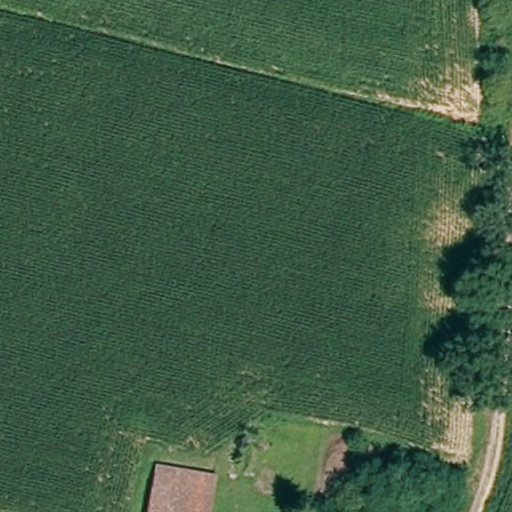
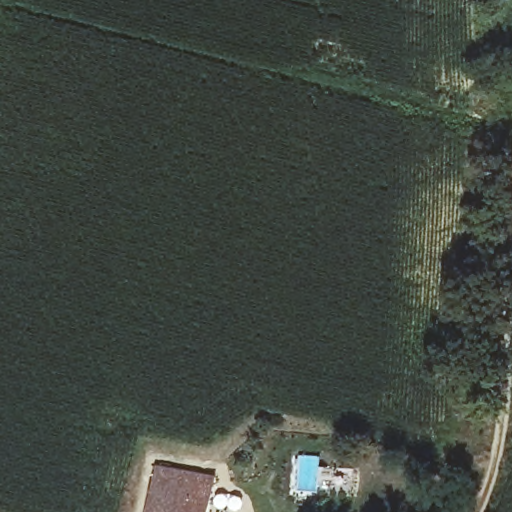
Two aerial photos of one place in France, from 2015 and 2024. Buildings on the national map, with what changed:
unchanged [(207,477),(202,512),(147,512),(153,471),(207,477)]
unchanged [(302,512),(277,512),(276,511),(302,511),(302,512)]

